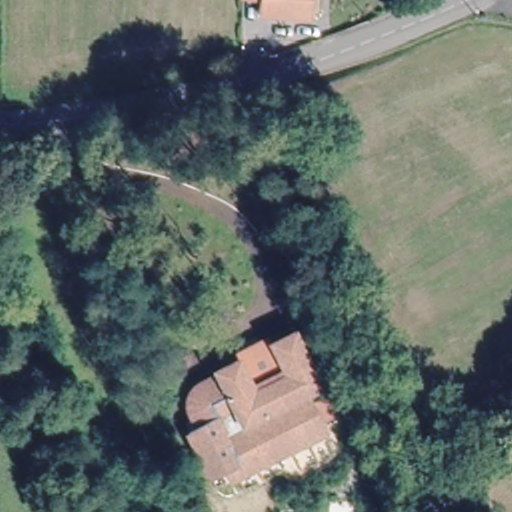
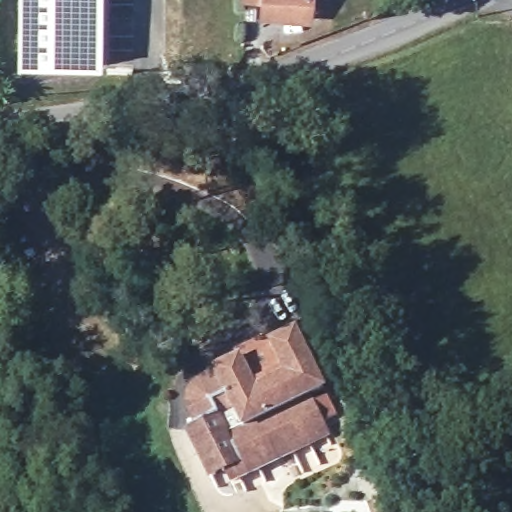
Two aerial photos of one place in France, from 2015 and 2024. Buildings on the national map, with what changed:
new [(18,0),(104,0),(103,66),(17,67),(18,0)]
unchanged [(306,17),(259,14),(260,0),(308,0),(306,17)]
unchanged [(295,332),(318,389),(295,398),(299,408),(313,401),(322,418),(303,426),(311,440),(222,481),(216,468),(202,474),(179,422),(190,417),(181,393),(181,390),(184,384),(189,380),(212,370),(211,366),(235,355),(249,387),(279,373),(267,343),(295,332)]

